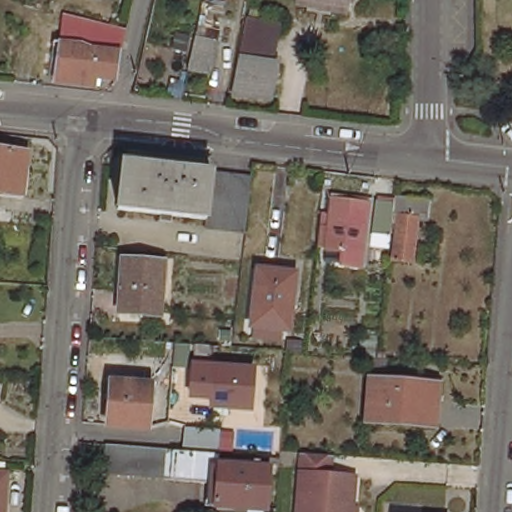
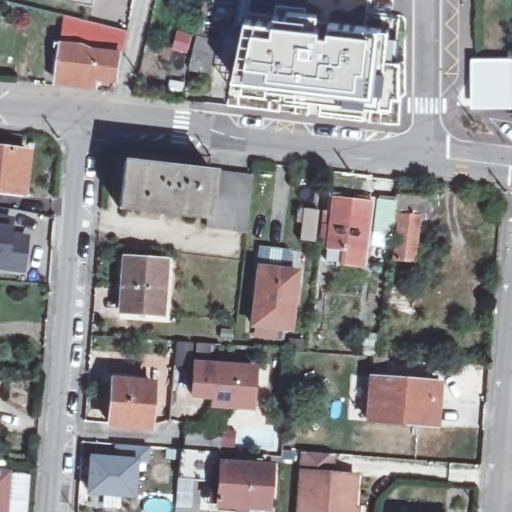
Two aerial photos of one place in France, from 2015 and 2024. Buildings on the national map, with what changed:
new [(93,2),(84,0),(94,0),(93,2)]
demolished [(347,12),(302,3),(302,0),(350,0),(347,12)]
new [(274,22),(276,15),(389,30),(388,59),(400,61),(400,96),(392,96),(390,107),(378,105),(230,90),(246,20),(274,22)]
unchanged [(128,33),(123,53),(120,52),(120,74),(118,80),(98,77),(96,86),(57,82),(65,16),(128,33)]
unchanged [(222,39),(215,72),(192,68),(200,35),(222,39)]
demolished [(272,59),(280,60),(272,96),(236,91),(243,55),(272,59)]
new [(512,109),(470,109),(469,56),(512,56),(512,109)]
unchanged [(29,152),(24,192),(0,190),(0,149),(29,152)]
unchanged [(208,174),(204,221),(118,210),(123,165),(208,174)]
unchanged [(208,174),(251,178),(243,232),(203,227),(204,221),(208,174)]
unchanged [(433,193),(431,214),(422,212),(416,257),(397,256),(402,210),(397,210),(395,230),(377,228),(381,196),(399,199),(400,189),(433,193)]
unchanged [(332,225),(336,197),(372,201),(367,249),(323,242),(325,225),(332,225)]
new [(15,219),(12,225),(11,235),(30,236),(25,273),(0,270),(0,217),(15,219)]
unchanged [(168,262),(165,317),(124,313),(128,260),(168,262)]
unchanged [(300,275),(293,332),(255,328),(262,270),(300,275)]
unchanged [(188,340),(186,363),(176,363),(178,339),(188,340)]
unchanged [(257,365),(254,405),(214,401),(215,393),(194,392),(196,360),(257,365)]
unchanged [(438,383),(436,425),(370,420),(373,378),(438,383)]
unchanged [(154,385),(151,427),(112,425),(116,382),(154,385)]
unchanged [(223,432),(223,435),(222,455),(224,455),(223,470),(273,472),(270,512),(235,512),(220,511),(222,482),(108,475),(110,450),(187,453),(188,430),(223,432)]
unchanged [(333,474),(357,476),(355,512),(301,512),(305,453),(334,455),(333,474)]
unchanged [(10,479),(7,512),(0,512),(0,478),(10,479)]

